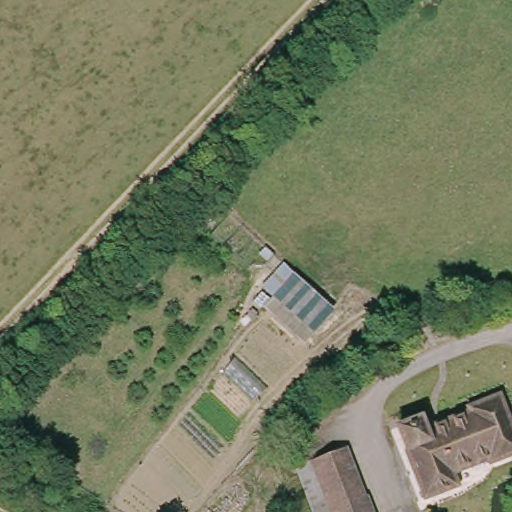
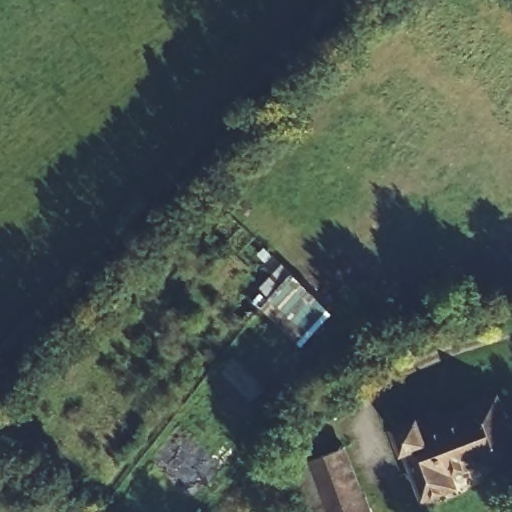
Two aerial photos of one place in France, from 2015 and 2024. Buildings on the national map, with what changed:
unchanged [(292,269),(332,309),(302,342),(261,305),(292,269)]
unchanged [(485,460),(447,468),(450,488),(420,495),(402,428),(400,420),(417,415),(420,428),(469,418),(466,406),(497,400),(510,454),(511,457),(504,459),(485,466),(485,460)]
unchanged [(347,444),(375,512),(314,512),(296,464),(347,444)]

